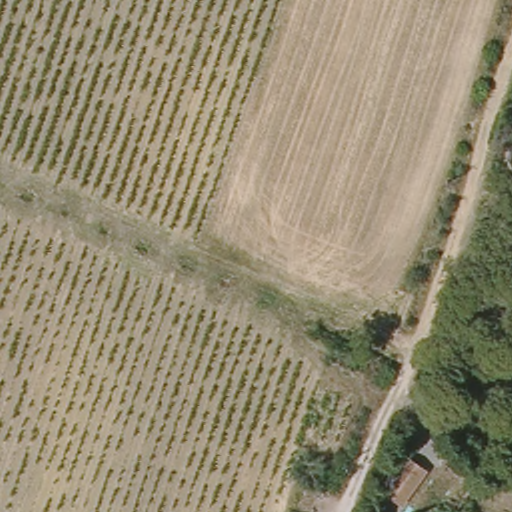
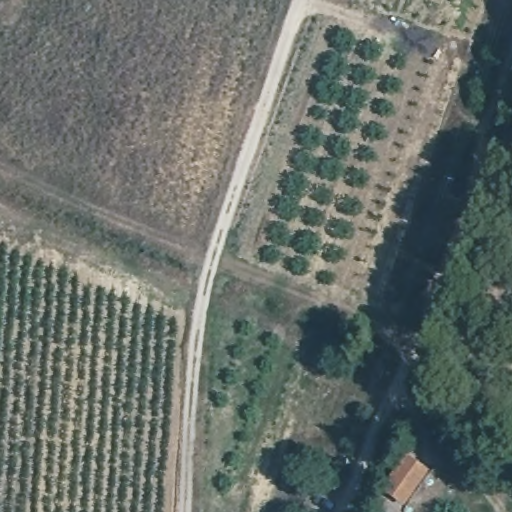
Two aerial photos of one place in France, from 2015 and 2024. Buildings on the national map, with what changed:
unchanged [(401,503),(381,486),(405,448),(430,465),(401,503)]

